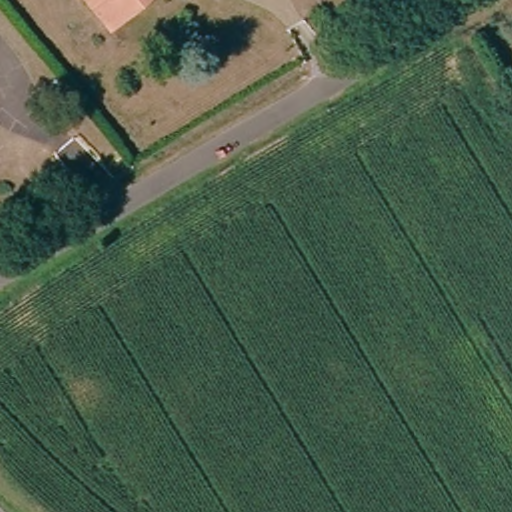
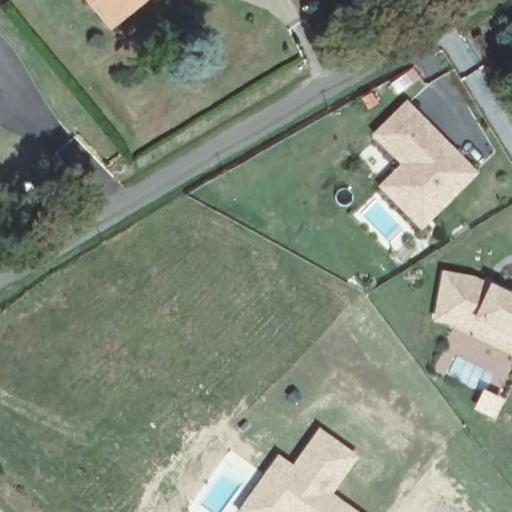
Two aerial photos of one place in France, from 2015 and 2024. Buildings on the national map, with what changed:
unchanged [(103,25),(84,0),(138,0),(133,3),(103,25)]
new [(476,174),(421,230),(377,187),(400,165),(370,135),(406,100),(476,174)]
new [(476,277),(490,284),(512,294),(512,347),(507,349),(465,328),(432,323),(441,271),(476,277)]
new [(291,466),(318,428),(357,457),(330,494),(357,512),(237,512),(277,454),(291,466)]

